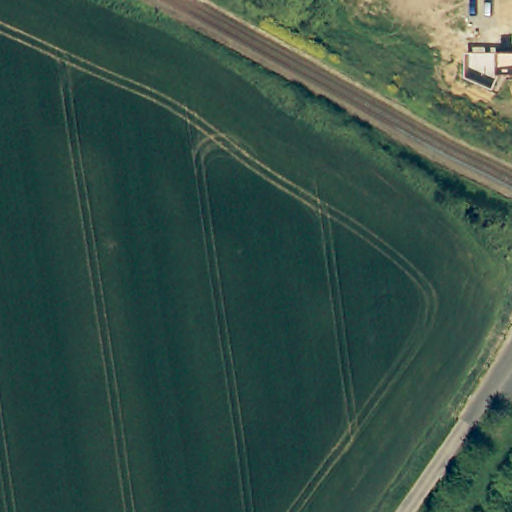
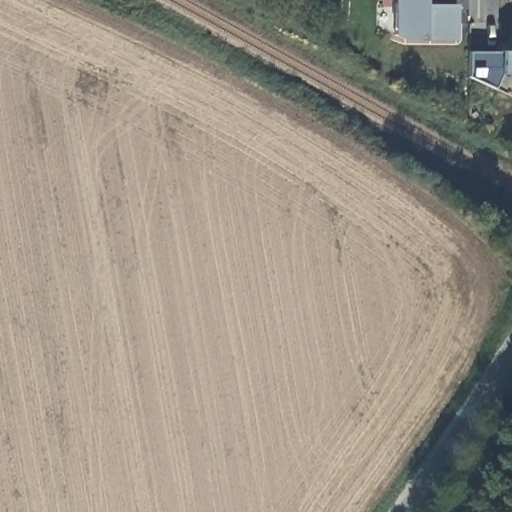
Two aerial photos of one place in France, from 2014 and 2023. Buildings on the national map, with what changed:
new [(457,41),(426,39),(402,39),(392,34),(392,0),(426,0),(426,4),(457,5),(457,41)]
unchanged [(502,74),(501,73),(496,89),(469,76),(470,52),(502,51),(512,51),(512,73),(502,74)]

